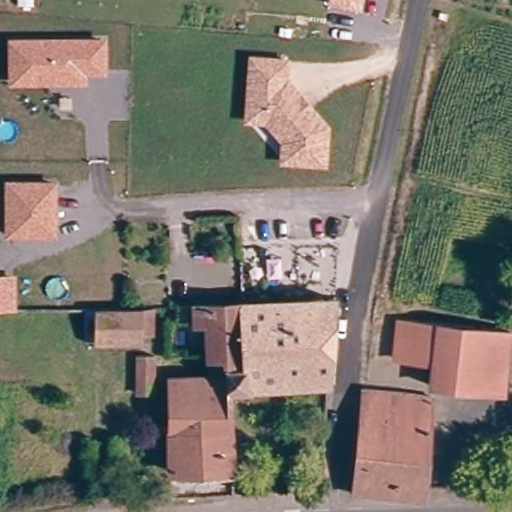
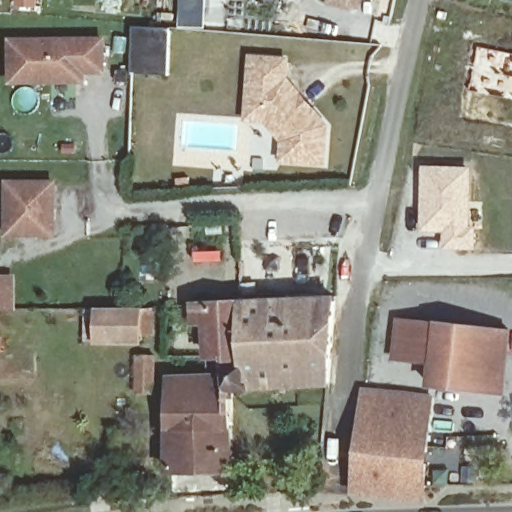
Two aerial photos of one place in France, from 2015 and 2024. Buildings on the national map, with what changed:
new [(205,0),(204,27),(177,27),(179,0),(205,0)]
unchanged [(328,5),(329,0),(363,0),(361,11),(328,5)]
new [(113,35),(129,35),(130,25),(171,27),(168,75),(129,72),(129,53),(112,52),(113,35)]
unchanged [(7,37),(106,38),(106,74),(87,74),(87,84),(7,86),(7,37)]
new [(470,91),(477,47),(512,54),(512,99),(470,91)]
unchanged [(289,57),(288,78),(330,125),(327,167),(278,165),(280,143),(265,125),(242,123),(247,55),(289,57)]
new [(420,164),(471,165),(471,202),(475,250),(441,249),(441,232),(418,231),(420,164)]
unchanged [(4,180),(57,181),(56,239),(4,237),(4,180)]
unchanged [(0,312),(0,274),(15,275),(16,312),(0,312)]
unchanged [(231,392),(224,382),(224,378),(224,358),(208,358),(208,326),(192,325),(193,306),(246,304),(337,301),(331,387),(231,392)]
unchanged [(126,312),(141,312),(142,337),(128,337),(128,348),(85,349),(84,315),(117,313),(126,312)]
unchanged [(439,329),(435,369),(395,363),(398,325),(439,329)]
unchanged [(509,337),(500,398),(433,392),(435,369),(439,329),(509,337)]
unchanged [(145,361),(146,395),(129,395),(128,360),(145,361)]
unchanged [(232,428),(194,426),(194,431),(170,431),(171,378),(224,378),(224,382),(231,392),(232,428)]
unchanged [(353,498),(363,393),(429,399),(423,488),(422,503),(353,498)]
unchanged [(194,431),(194,426),(232,428),(232,473),(170,472),(170,431),(194,431)]

